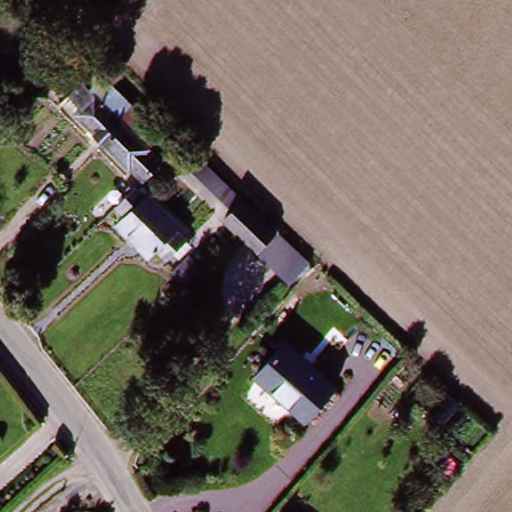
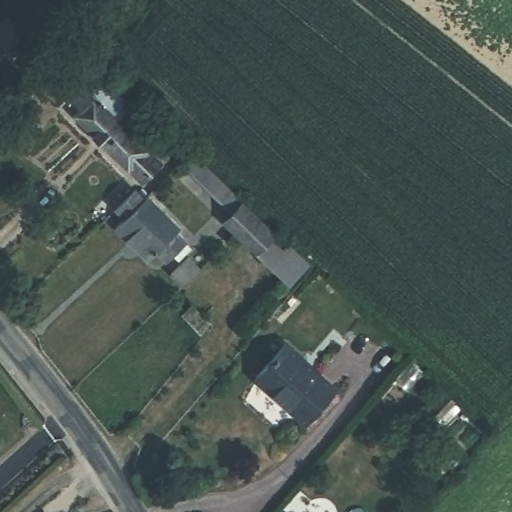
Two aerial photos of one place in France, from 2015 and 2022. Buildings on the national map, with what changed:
unchanged [(4,68),(0,64),(0,31),(10,20),(30,40),(4,68)]
unchanged [(160,136),(150,149),(161,161),(141,183),(73,117),(78,106),(69,97),(84,83),(93,91),(104,80),(109,85),(131,107),(160,136)]
unchanged [(286,283),(221,220),(228,211),(208,192),(176,161),(185,151),(219,184),(304,264),(286,283)]
unchanged [(134,189),(146,199),(151,195),(181,224),(176,228),(184,236),(166,255),(157,249),(149,257),(118,226),(126,216),(118,207),(134,189)]
unchanged [(198,265),(183,283),(171,272),(186,256),(198,265)]
unchanged [(210,338),(188,315),(195,306),(218,328),(210,338)]
unchanged [(304,423),(253,379),(281,346),(331,389),(304,423)]

